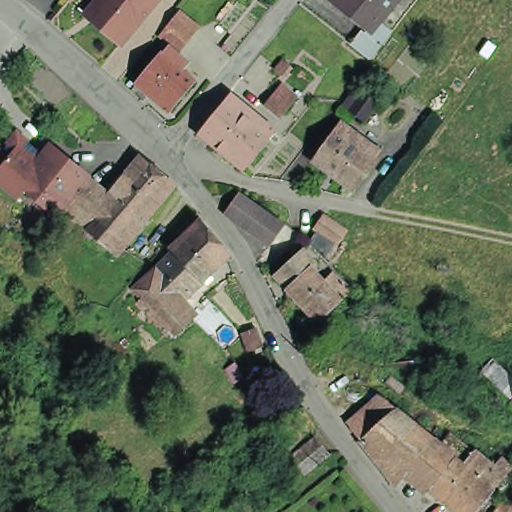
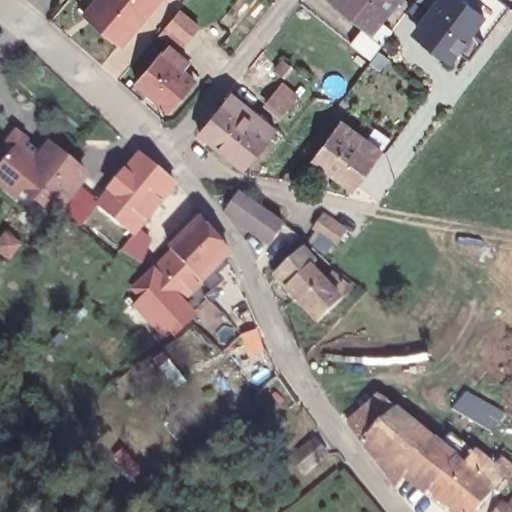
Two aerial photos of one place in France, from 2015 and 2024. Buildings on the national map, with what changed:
unchanged [(85,15),(97,0),(155,0),(121,44),(85,15)]
unchanged [(342,0),(391,0),(372,24),(342,0)]
new [(424,23),(441,0),(460,0),(467,5),(471,0),(498,0),(508,8),(469,60),(457,51),(449,61),(420,39),(430,28),(424,23)]
unchanged [(187,43),(167,28),(180,12),(199,28),(187,43)]
unchanged [(371,56),(351,40),(362,26),(382,43),(371,56)]
unchanged [(163,55),(170,48),(189,64),(182,71),(195,83),(170,111),(137,83),(161,54),(163,55)]
unchanged [(284,76),(277,71),(284,61),(291,66),(284,76)]
unchanged [(249,112),(271,130),(265,137),(266,139),(240,171),(207,144),(195,134),(221,102),(233,111),(243,119),(249,112)]
unchanged [(314,161),(337,129),(351,139),(355,133),(382,152),(377,158),(354,190),(314,161)]
unchanged [(58,211),(29,189),(17,203),(0,188),(0,163),(22,137),(40,153),(52,144),(89,174),(110,192),(112,189),(142,153),(177,183),(147,218),(139,227),(126,243),(117,253),(62,206),(58,211)]
unchanged [(290,222),(265,254),(251,237),(251,238),(245,231),(237,220),(240,217),(231,209),(246,189),(290,222)]
unchanged [(331,245),(309,230),(318,217),(340,232),(331,245)]
unchanged [(166,250),(197,220),(226,255),(222,259),(197,283),(169,254),(166,250)]
unchanged [(329,274),(347,290),(337,300),(315,322),(285,289),(279,284),(272,277),(298,252),(306,259),(312,267),(307,271),(320,284),(329,274)]
unchanged [(144,279),(169,254),(197,283),(172,308),(171,308),(144,279)]
unchanged [(172,308),(186,323),(171,336),(130,290),(144,279),(171,308),(172,308)]
unchanged [(184,319),(187,314),(193,319),(189,324),(184,319)]
unchanged [(434,490),(414,474),(402,488),(366,442),(355,427),(384,397),(392,402),(402,409),(460,458),(434,490)]
unchanged [(315,442),(327,456),(304,474),(292,460),(315,442)]
unchanged [(434,490),(460,458),(465,462),(474,451),(497,470),(505,461),(512,467),(512,474),(508,479),(499,491),(481,512),(460,512),(434,490)]
unchanged [(512,506),(512,512),(508,512),(512,506)]

